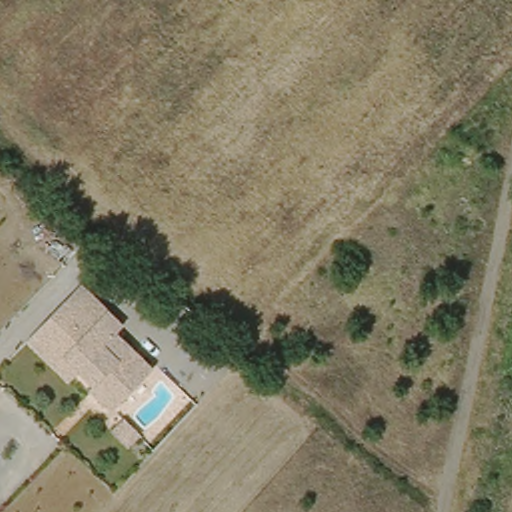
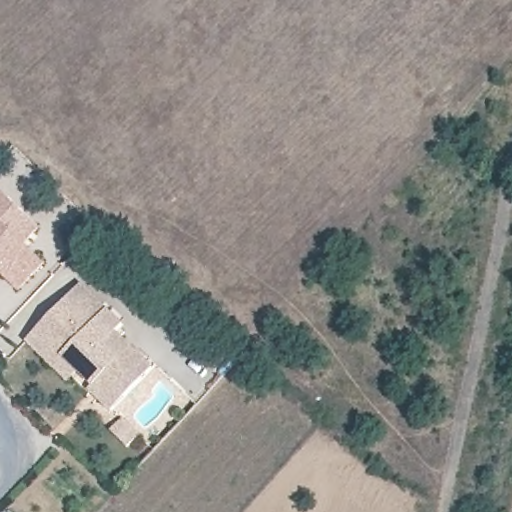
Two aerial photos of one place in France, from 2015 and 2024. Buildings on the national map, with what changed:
new [(29,246),(48,265),(21,294),(0,275),(0,188),(44,230),(29,246)]
unchanged [(110,411),(88,392),(95,384),(81,372),(69,382),(27,341),(83,284),(123,323),(116,333),(152,368),(110,411)]

